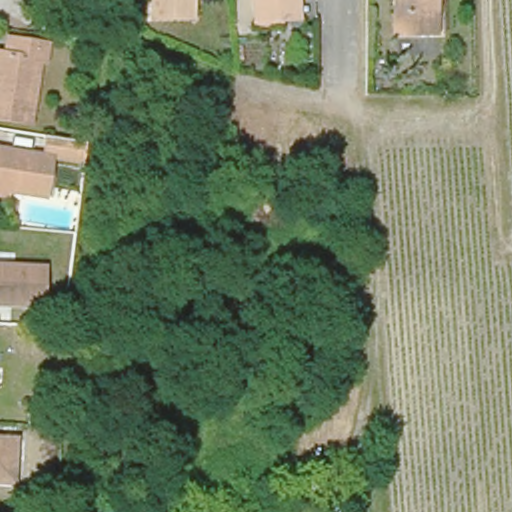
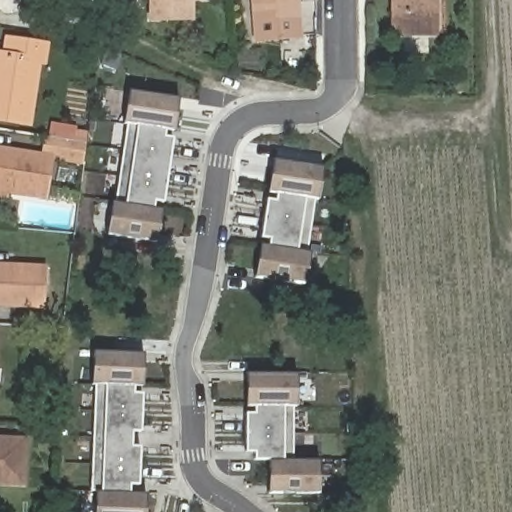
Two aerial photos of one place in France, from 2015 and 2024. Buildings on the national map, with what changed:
unchanged [(148,23),(148,2),(148,0),(188,0),(188,23),(148,23)]
unchanged [(248,30),(246,0),(291,0),(291,11),(292,26),(276,28),(248,30)]
unchanged [(431,40),(387,41),(387,22),(387,0),(430,0),(430,23),(431,40)]
unchanged [(45,50),(42,66),(36,66),(26,129),(0,125),(0,60),(3,44),(45,50)]
new [(129,90),(179,98),(176,115),(173,131),(165,130),(164,136),(173,137),(163,202),(155,201),(154,209),(162,210),(160,226),(157,242),(106,234),(108,218),(111,202),(114,202),(126,124),(136,125),(124,123),(126,106),(129,90)]
unchanged [(84,122),(71,121),(72,111),(85,114),(84,122)]
unchanged [(37,144),(80,151),(77,172),(45,167),(38,206),(1,200),(0,206),(0,159),(33,165),(37,144)]
new [(273,160),(323,166),(321,183),(319,200),(315,199),(307,252),(310,252),(307,269),(305,285),(256,278),(258,262),(261,245),(268,246),(269,239),(260,238),(266,199),(275,200),(276,193),(268,192),(271,176),(273,160)]
unchanged [(47,317),(11,315),(0,314),(0,274),(49,277),(47,317)]
new [(91,491),(94,385),(92,384),(93,368),(94,351),(143,353),(143,369),(142,386),(134,386),(134,392),(143,393),(141,432),(133,432),(132,446),(141,446),(139,485),(130,485),(130,492),(145,492),(145,509),(145,512),(96,512),(96,507),(96,491),(91,491)]
new [(254,461),(254,452),(245,452),(245,413),(254,413),(254,407),(246,407),(246,390),(246,373),(297,373),(297,390),(297,407),(293,407),(293,460),(319,460),(319,476),(319,493),(268,493),(268,476),(268,461),(254,461)]
unchanged [(15,497),(0,496),(0,454),(18,455),(15,497)]

